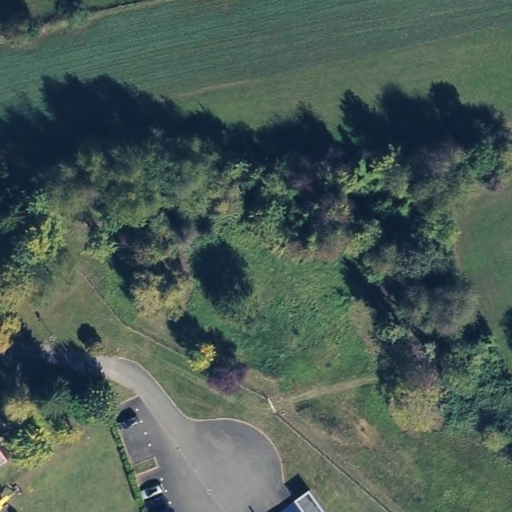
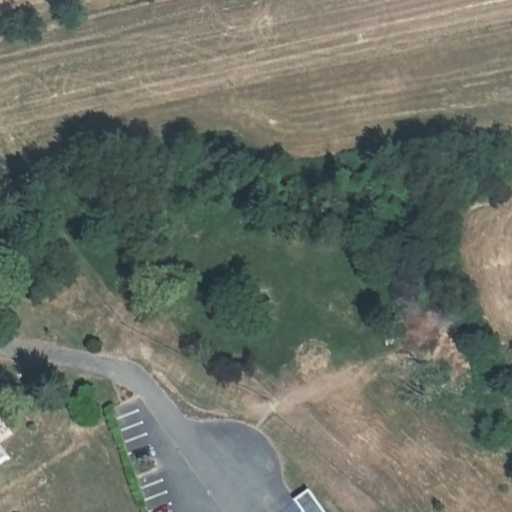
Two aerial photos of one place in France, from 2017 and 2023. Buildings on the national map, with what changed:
unchanged [(10,462),(0,470),(0,449),(10,462)]
unchanged [(304,512),(305,511),(298,499),(312,490),(327,512),(304,512)]

